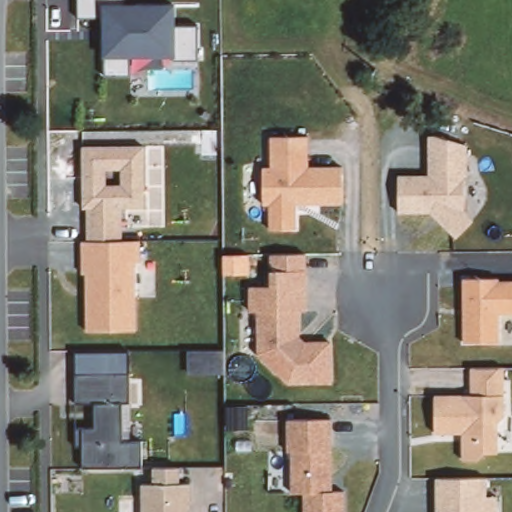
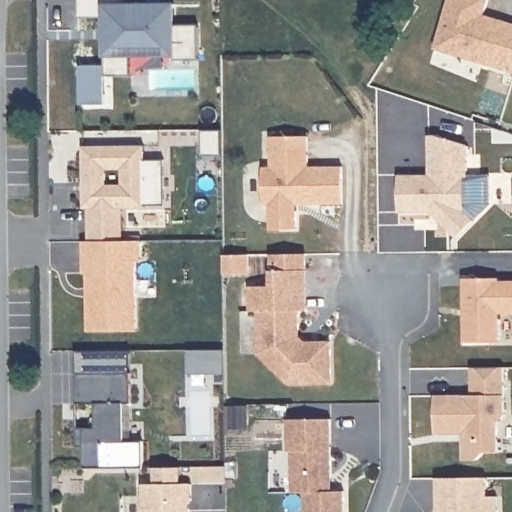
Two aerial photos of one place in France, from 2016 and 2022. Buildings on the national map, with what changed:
unchanged [(200,59),(176,60),(176,56),(131,56),(132,75),(105,74),(104,56),(105,16),(81,16),(81,0),(127,0),(127,2),(178,3),(178,24),(200,24),(200,59)]
new [(483,15),(512,24),(512,73),(434,48),(448,0),(486,0),(483,15)]
unchanged [(431,170),(431,133),(472,143),(470,211),(476,220),(457,237),(434,212),(399,212),(401,174),(431,170)]
unchanged [(311,135),(314,165),(344,165),(343,206),(299,205),(298,231),(270,231),(270,206),(264,204),(264,165),(272,163),(273,135),(311,135)]
unchanged [(148,144),(149,211),(124,211),(125,242),(87,241),(86,207),(83,206),(83,146),(148,144)]
unchanged [(144,261),(138,261),(138,330),(87,331),(86,274),(82,274),(82,241),(87,241),(125,242),(125,241),(143,240),(144,261)]
unchanged [(308,252),(308,310),(302,310),(302,332),(307,339),(334,340),(332,383),(285,383),(259,349),(257,309),(248,308),(250,283),(269,283),(269,253),(308,252)]
unchanged [(512,278),(512,315),(500,315),(499,343),(465,342),(464,276),(512,278)]
new [(200,344),(214,344),(215,367),(200,367),(179,367),(179,344),(200,344)]
unchanged [(463,434),(434,434),(435,392),(471,394),(472,364),(506,365),(505,415),(499,426),(498,457),(463,458),(463,434)]
unchanged [(132,372),(130,400),(123,400),(127,442),(145,443),(144,465),(86,465),(88,428),(96,426),(96,401),(78,399),(78,372),(132,372)]
unchanged [(335,489),(346,492),(344,512),(304,512),(304,493),(293,491),(287,419),(334,417),(335,489)]
unchanged [(191,501),(190,512),(143,512),(143,482),(153,482),(154,465),(181,466),(181,483),(193,483),(193,501),(191,501)]
unchanged [(490,512),(438,512),(438,477),(490,474),(490,512)]

